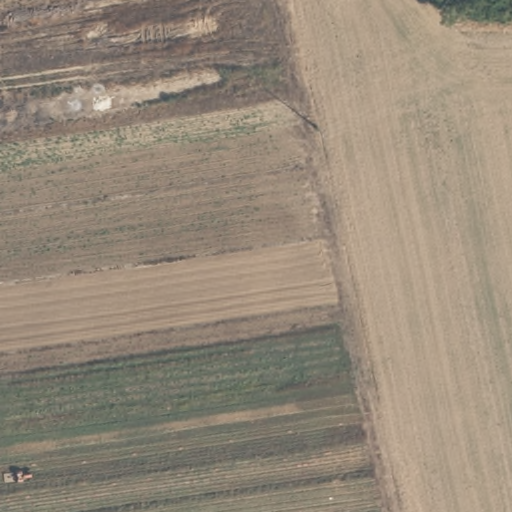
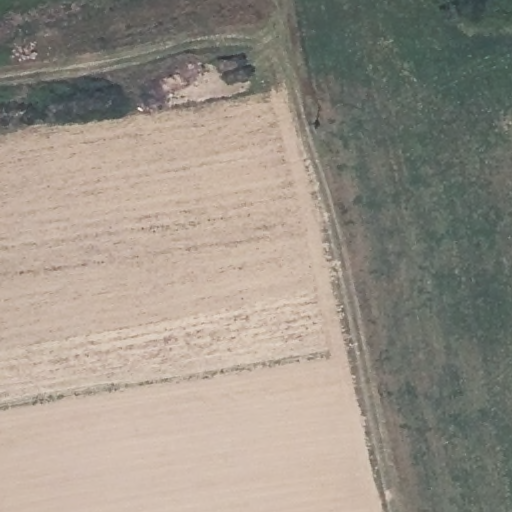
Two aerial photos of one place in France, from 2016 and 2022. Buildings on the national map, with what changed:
[]

